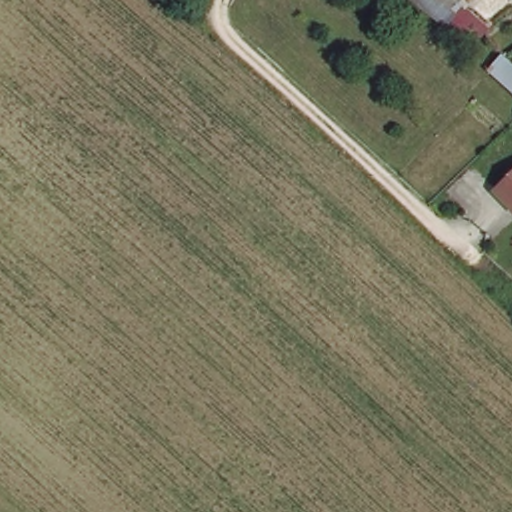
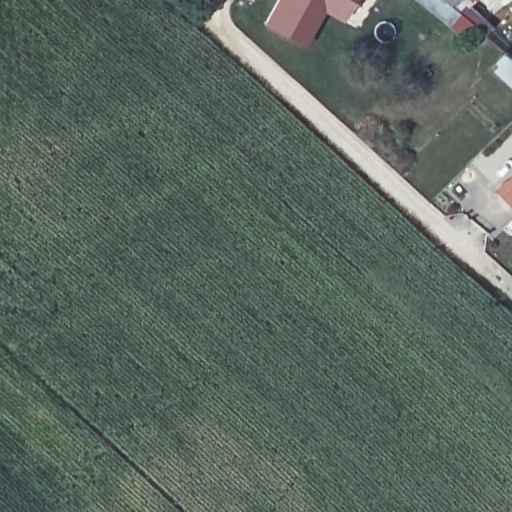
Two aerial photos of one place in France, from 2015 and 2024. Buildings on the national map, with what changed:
new [(276,0),(352,0),(340,21),(323,12),(301,47),(263,25),(276,0)]
unchanged [(436,4),(431,0),(440,0),(436,4)]
unchanged [(492,71),(505,55),(512,60),(512,86),(492,71)]
unchanged [(502,181),(512,172),(512,193),(502,181)]

